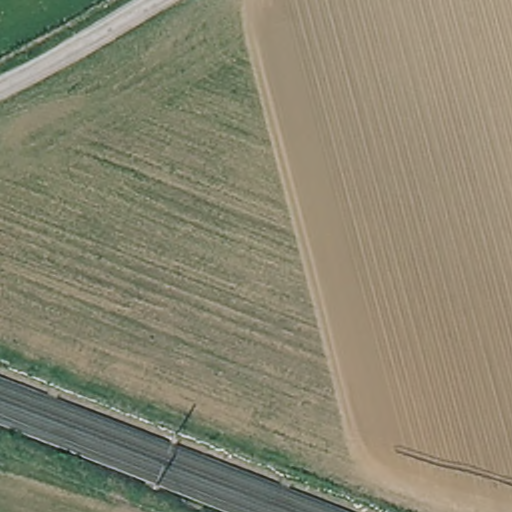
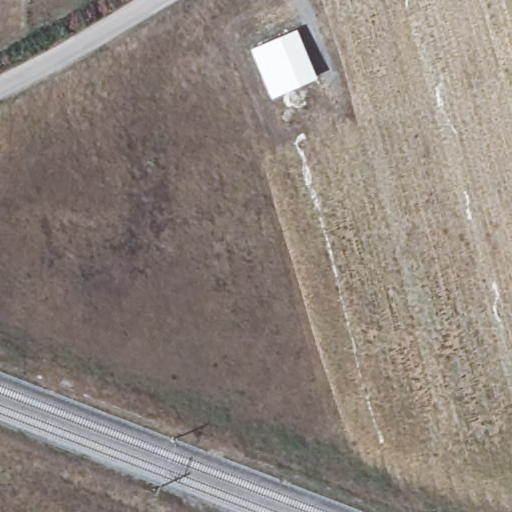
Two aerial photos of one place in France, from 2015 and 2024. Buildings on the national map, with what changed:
new [(296,27),(317,76),(271,97),(251,47),(296,27)]

